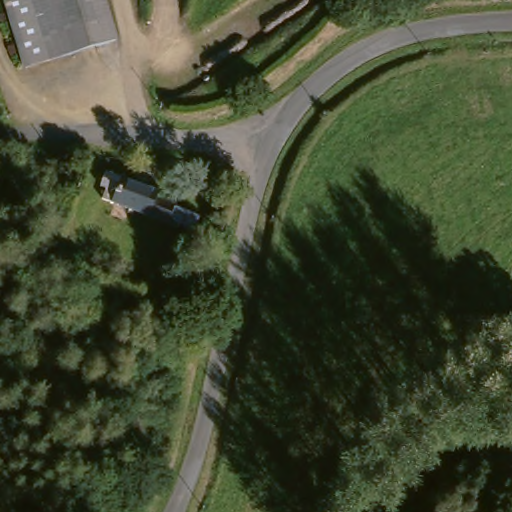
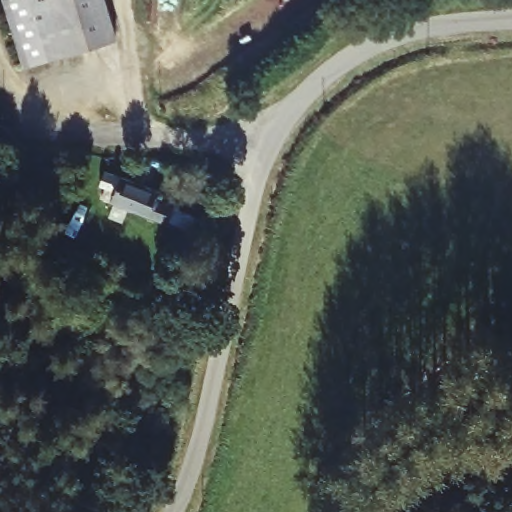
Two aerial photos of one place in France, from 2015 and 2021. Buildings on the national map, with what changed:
unchanged [(104,47),(29,69),(11,0),(92,0),(104,47)]
unchanged [(99,196),(83,190),(91,166),(108,170),(99,196)]
unchanged [(194,214),(186,236),(103,208),(109,183),(194,214)]

